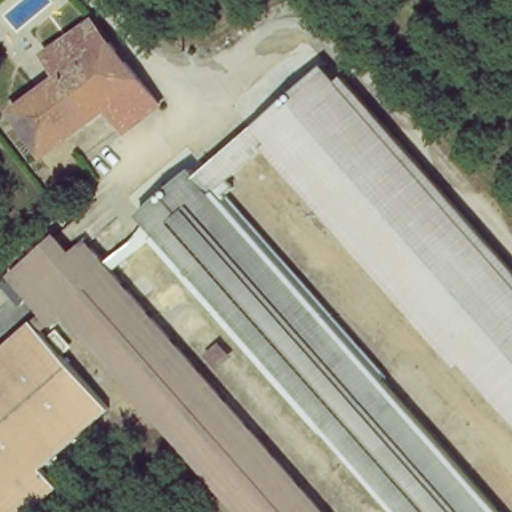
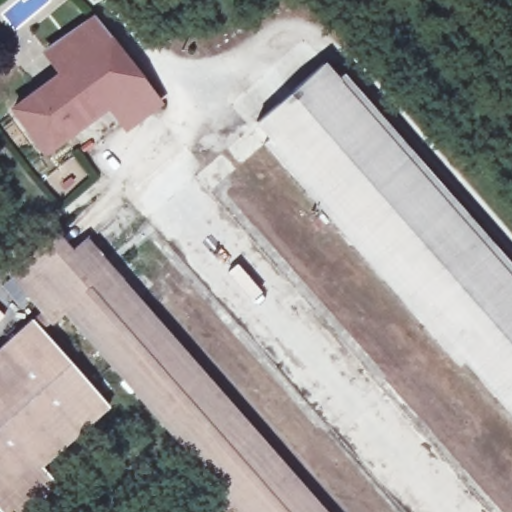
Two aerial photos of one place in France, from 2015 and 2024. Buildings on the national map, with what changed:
unchanged [(66,76),(52,55),(95,26),(111,45),(83,65),(66,76)]
unchanged [(163,105),(154,111),(130,131),(112,106),(83,65),(111,45),(163,105)]
unchanged [(324,63),(366,111),(512,276),(512,418),(301,181),(263,137),(252,126),(324,63)]
unchanged [(83,65),(112,106),(47,153),(18,111),(66,76),(83,65)]
demolished [(205,188),(491,512),(402,512),(144,219),(195,176),(205,188)]
unchanged [(65,313),(52,322),(13,277),(51,244),(66,261),(86,246),(102,263),(114,278),(321,512),(240,512),(65,313)]
unchanged [(111,409),(42,469),(59,487),(31,512),(0,512),(0,350),(32,322),(111,409)]

